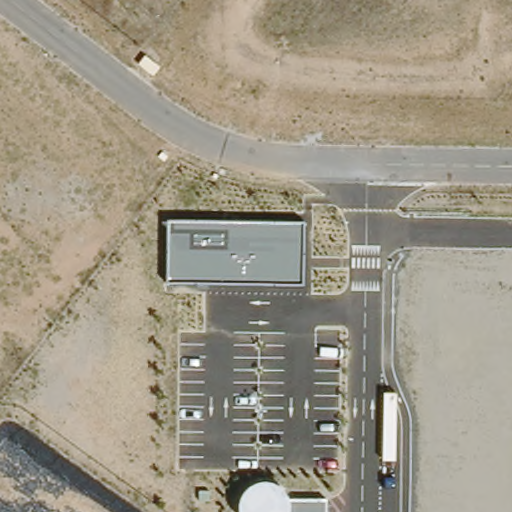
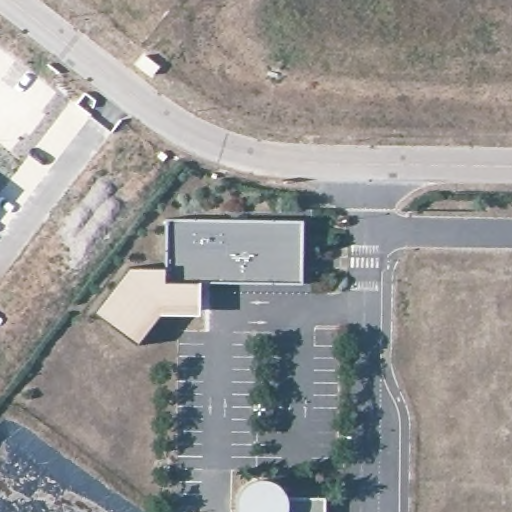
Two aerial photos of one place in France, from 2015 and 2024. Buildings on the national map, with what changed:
unchanged [(167,220),(303,221),(302,282),(166,280),(167,220)]
new [(129,267),(166,268),(166,280),(199,280),(198,315),(159,315),(138,345),(95,312),(129,267)]
unchanged [(242,490),(252,482),(263,479),(276,482),(285,490),(288,497),(326,500),(326,512),(238,512),(238,498),(242,490)]

